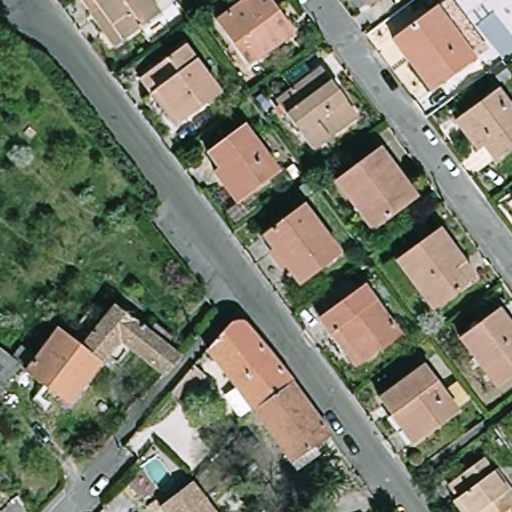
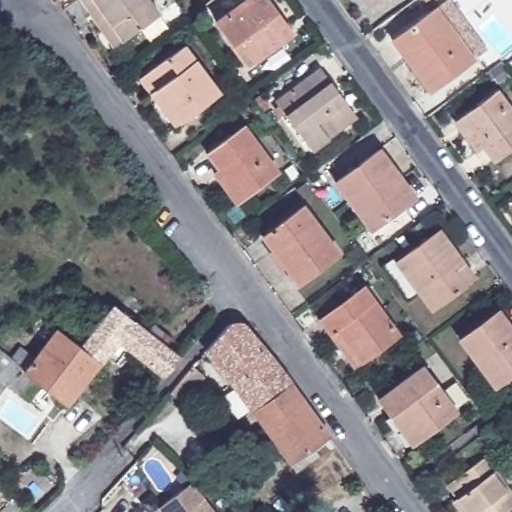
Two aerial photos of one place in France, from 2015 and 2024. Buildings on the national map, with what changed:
unchanged [(91,0),(159,0),(167,11),(131,38),(122,44),(98,11),(91,0)]
unchanged [(218,21),(246,0),(271,0),(294,31),(258,58),(249,64),(236,46),(218,21)]
unchanged [(361,0),(376,0),(367,7),(361,0)]
unchanged [(424,0),(447,0),(432,11),(424,0)]
unchanged [(409,63),(397,46),(441,14),(479,65),(440,93),(434,97),(409,63)]
unchanged [(159,93),(147,76),(192,44),(227,93),(187,121),(182,125),(159,93)]
unchanged [(318,150),(282,101),(326,69),(362,117),(318,150)]
unchanged [(464,111),(502,85),(512,99),(512,147),(497,158),(487,143),(482,148),(459,116),(464,111)]
unchanged [(215,172),(223,166),(212,150),(246,125),(279,170),(249,193),(237,201),(215,172)]
unchanged [(359,211),(337,181),(380,150),(410,191),(415,197),(405,205),(377,226),(372,229),(359,211)]
unchanged [(512,201),(512,211),(507,204),(512,201)]
unchanged [(296,282),(261,234),(300,205),(336,253),(296,282)]
unchanged [(465,284),(432,309),(395,261),(439,230),(462,262),(474,278),(465,284)]
unchanged [(335,333),(324,318),(369,286),(404,333),(368,360),(359,366),(335,333)]
unchanged [(113,306),(146,332),(152,324),(161,330),(155,338),(178,356),(166,370),(162,375),(132,353),(120,368),(105,356),(100,362),(81,348),(113,306)]
unchanged [(462,338),(499,311),(512,329),(512,373),(496,385),(462,338)]
unchanged [(227,326),(242,324),(290,382),(252,412),(206,350),(227,326)]
unchanged [(23,369),(55,329),(81,348),(100,362),(66,404),(23,369)]
unchanged [(14,364),(0,383),(0,354),(14,364)]
unchanged [(204,376),(180,403),(168,393),(192,366),(204,376)]
unchanged [(390,415),(395,411),(384,395),(424,366),(455,412),(420,437),(410,444),(390,415)]
unchanged [(312,450),(314,453),(294,469),(252,412),(290,382),(329,438),(312,450)]
unchanged [(130,436),(135,441),(130,447),(125,442),(130,436)]
unchanged [(452,499),(457,495),(470,485),(460,473),(482,456),(506,488),(508,486),(512,491),(512,504),(502,512),(461,512),(452,499)]
unchanged [(163,512),(198,485),(204,494),(218,512),(163,512)]

